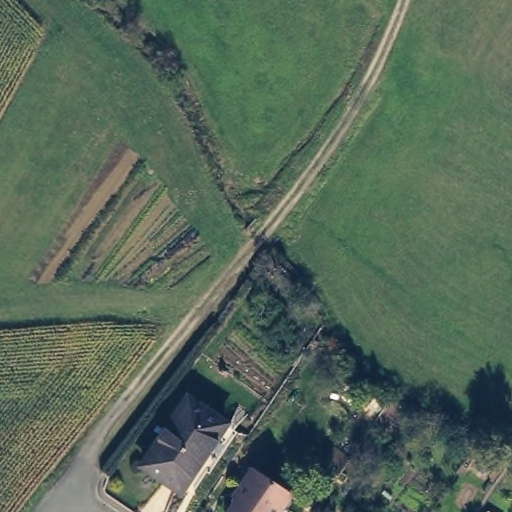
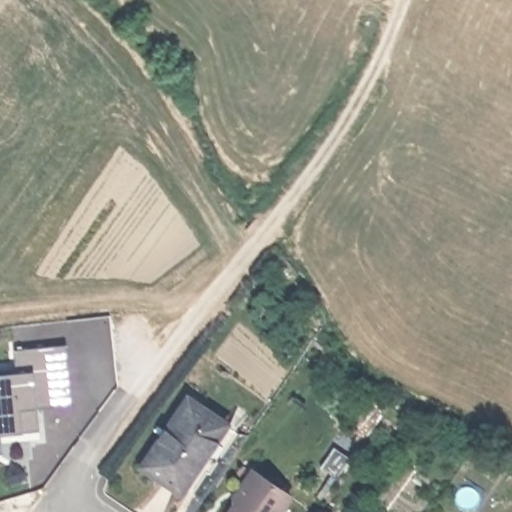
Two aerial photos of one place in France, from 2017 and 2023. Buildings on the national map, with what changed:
new [(73,405),(38,408),(40,432),(23,433),(0,435),(0,369),(17,367),(15,351),(67,346),(73,405)]
unchanged [(229,430),(202,467),(193,460),(175,487),(139,461),(184,398),(229,430)]
unchanged [(280,512),(230,512),(239,500),(238,493),(252,475),(288,500),(280,512)]

